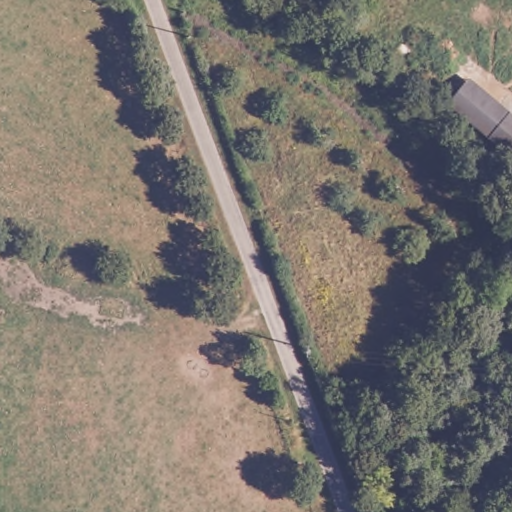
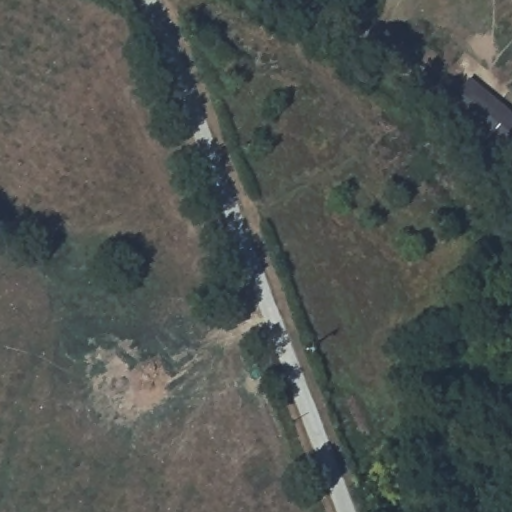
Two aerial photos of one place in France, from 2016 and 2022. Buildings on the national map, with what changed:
unchanged [(471,135),(452,119),(444,113),(462,89),(484,106),(497,116),(512,128),(512,166),(471,135)]

